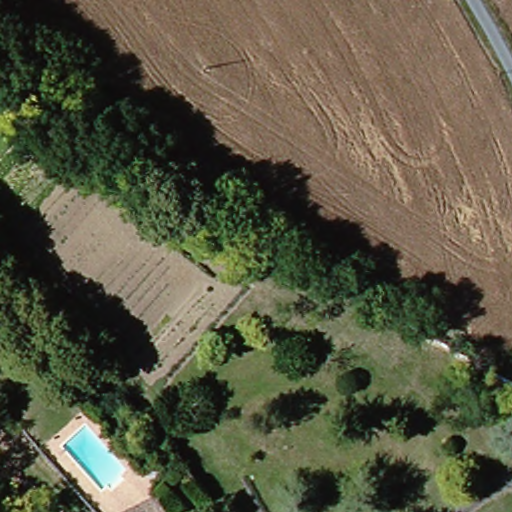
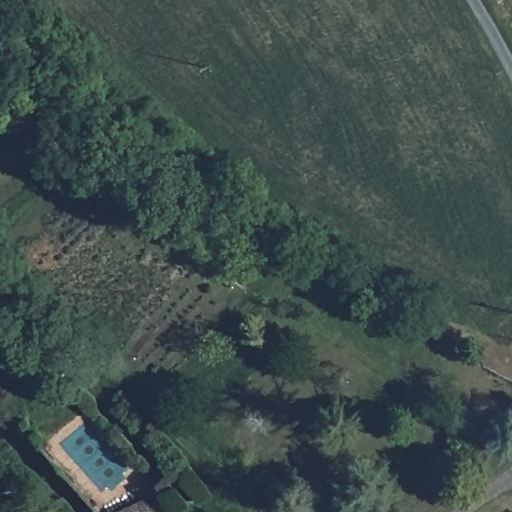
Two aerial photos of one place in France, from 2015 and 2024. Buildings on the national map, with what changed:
unchanged [(148,506),(151,512),(137,512),(148,506)]

